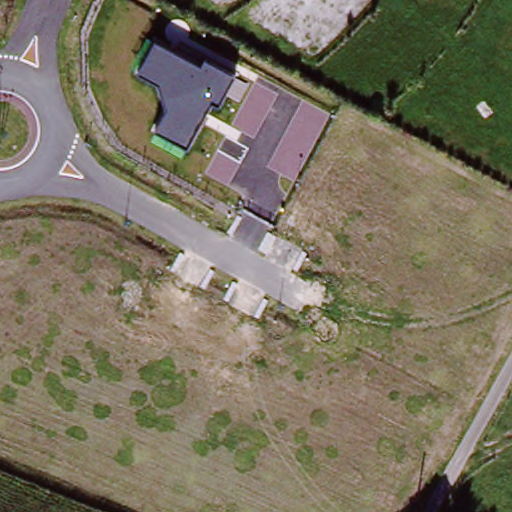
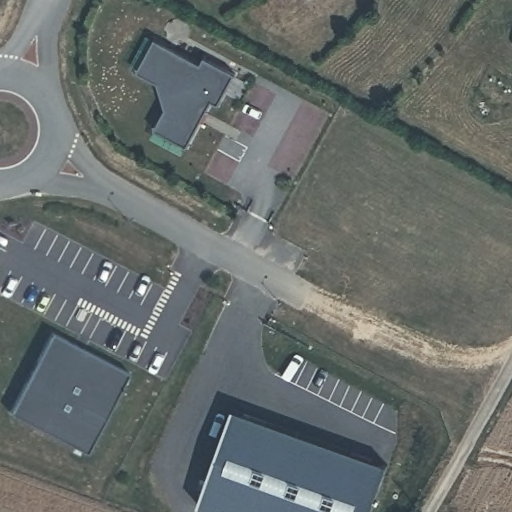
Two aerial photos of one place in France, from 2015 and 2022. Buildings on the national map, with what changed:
unchanged [(201,64),(205,58),(236,74),(219,104),(211,99),(186,145),(156,128),(167,106),(160,83),(137,70),(155,38),(201,64)]
new [(128,373),(88,452),(11,412),(52,332),(128,373)]
new [(386,464),(370,512),(215,512),(197,506),(233,409),(386,464)]

